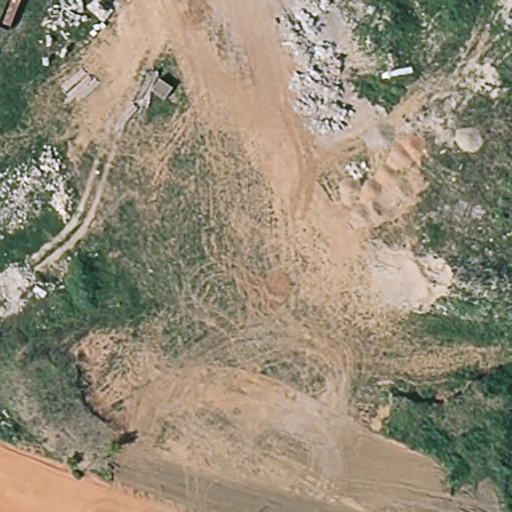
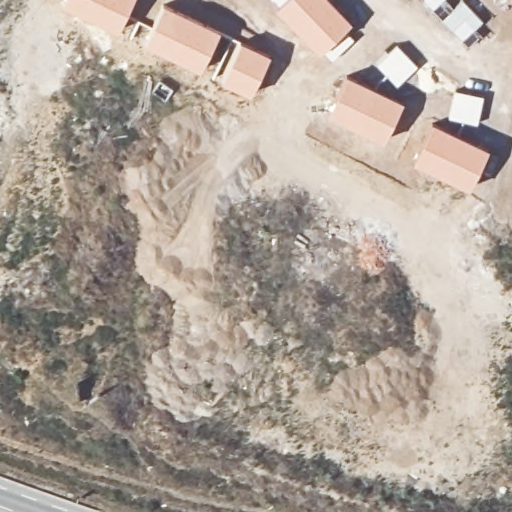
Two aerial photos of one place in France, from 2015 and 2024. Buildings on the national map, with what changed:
new [(63,4),(65,0),(133,0),(120,29),(63,4)]
new [(345,28),(353,37),(331,59),(323,50),(319,55),(274,7),(279,3),(276,0),(331,0),(352,22),(345,28)]
new [(449,0),(455,7),(462,0),(463,0),(482,20),(475,27),(481,34),(467,47),(422,0),(449,0)]
new [(201,70),(145,43),(162,4),(219,30),(201,70)]
new [(269,54),(251,95),(221,80),(240,40),(269,54)]
new [(384,141),(329,115),(348,74),(403,100),(384,141)]
new [(413,161),(432,121),(489,149),(469,189),(413,161)]

